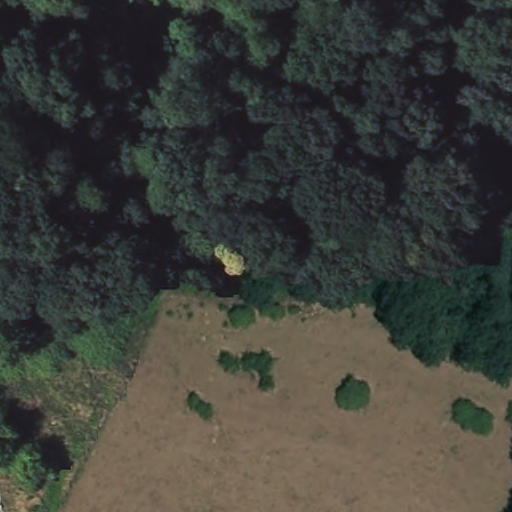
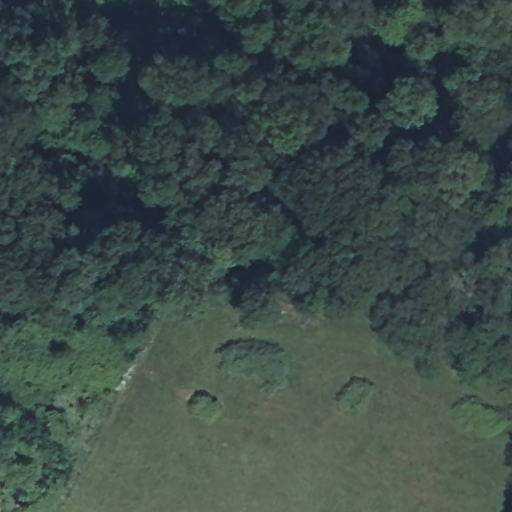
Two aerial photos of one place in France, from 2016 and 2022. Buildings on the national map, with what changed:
[]

